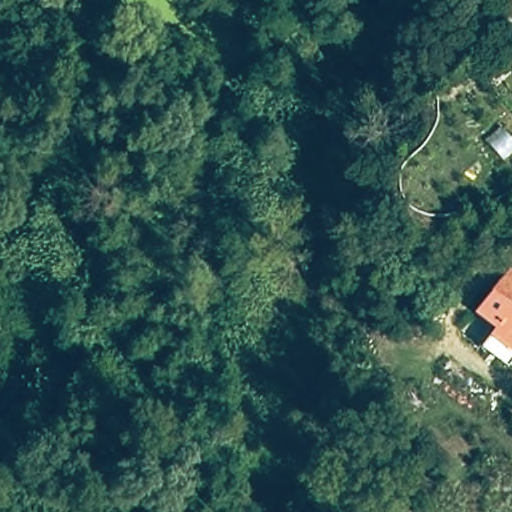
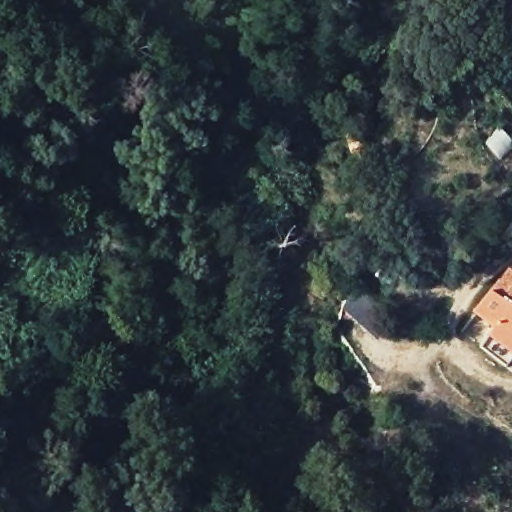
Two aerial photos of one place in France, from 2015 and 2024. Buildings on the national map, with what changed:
unchanged [(495,332),(474,316),(512,276),(512,363),(487,344),(495,332)]

